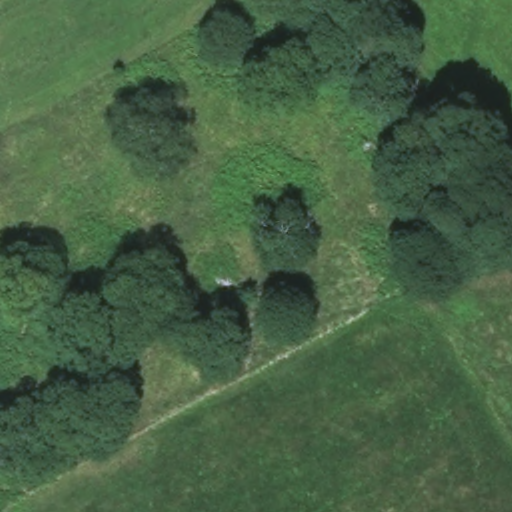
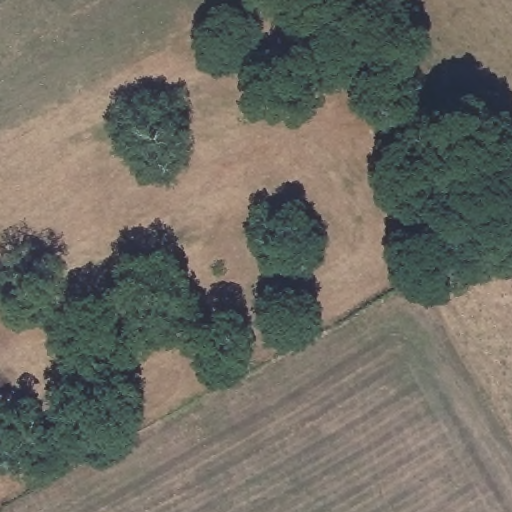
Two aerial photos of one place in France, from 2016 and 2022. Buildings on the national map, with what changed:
unchanged [(512,152),(498,171),(470,152),(485,125),(512,144),(512,152)]

